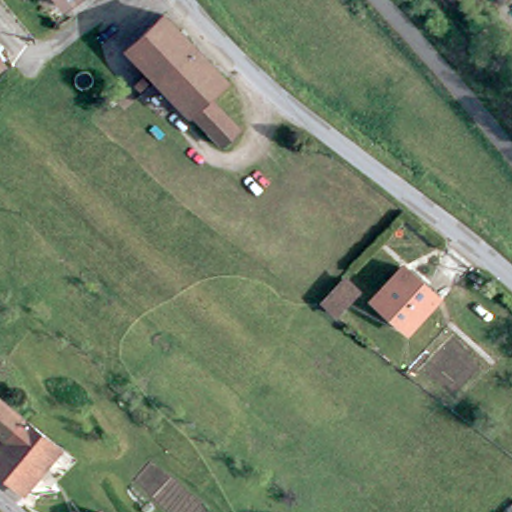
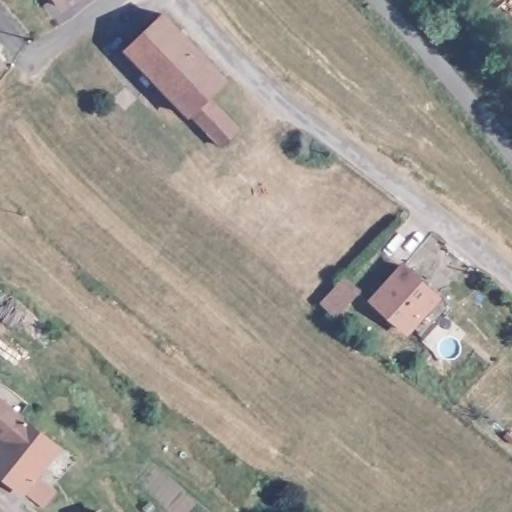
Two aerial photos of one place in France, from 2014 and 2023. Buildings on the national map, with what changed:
unchanged [(58,0),(77,0),(65,9),(58,0)]
unchanged [(130,60),(163,24),(222,81),(207,98),(188,118),(130,60)]
unchanged [(216,144),(188,118),(207,98),(235,124),(216,144)]
unchanged [(417,324),(382,297),(405,267),(440,294),(417,324)]
unchanged [(372,291),(351,316),(338,305),(360,278),(372,291)]
unchanged [(27,416),(5,439),(0,434),(0,393),(25,416),(27,416)]
unchanged [(66,452),(23,498),(0,479),(0,445),(5,439),(27,416),(66,452)]

